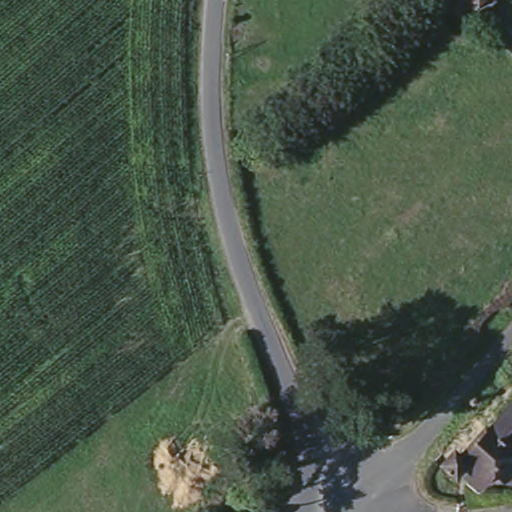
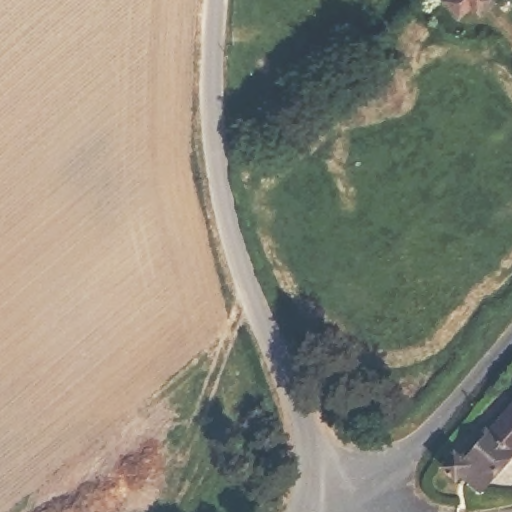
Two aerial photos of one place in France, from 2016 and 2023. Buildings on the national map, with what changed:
unchanged [(480,12),(475,7),(472,4),(461,14),(447,0),(493,0),(480,12)]
unchanged [(512,447),(512,455),(485,486),(471,473),(466,476),(462,477),(455,476),(450,471),(449,464),(454,458),(461,455),(465,456),(492,429),(497,433),(512,416),(512,446),(512,447)]

